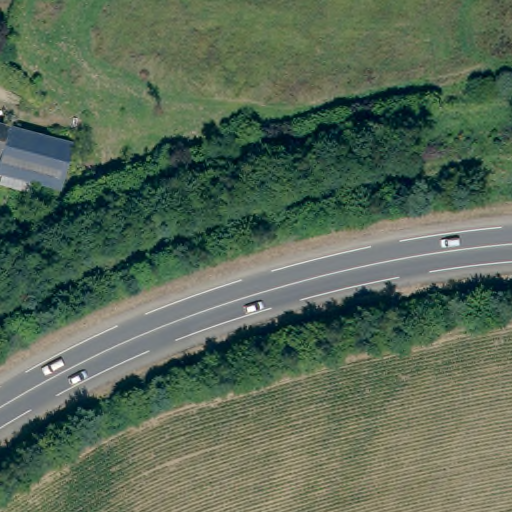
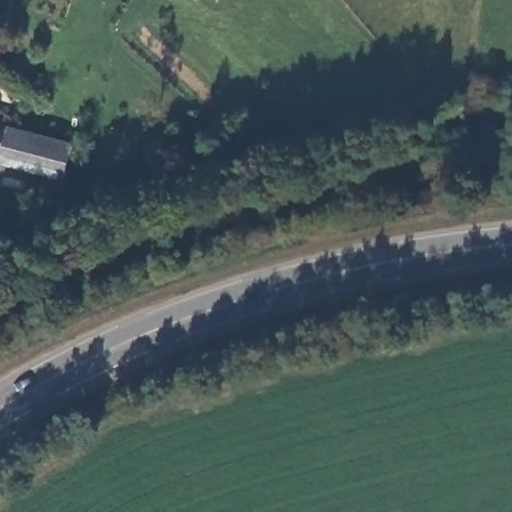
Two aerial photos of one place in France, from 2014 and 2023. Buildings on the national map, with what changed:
unchanged [(0,125),(5,126),(0,143),(0,125)]
unchanged [(0,171),(0,143),(5,126),(57,138),(46,181),(0,171)]

